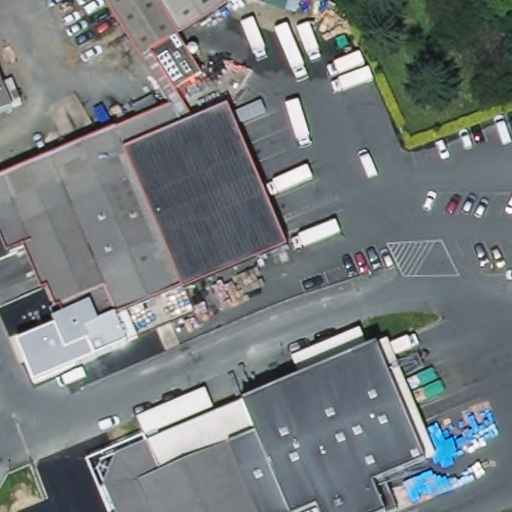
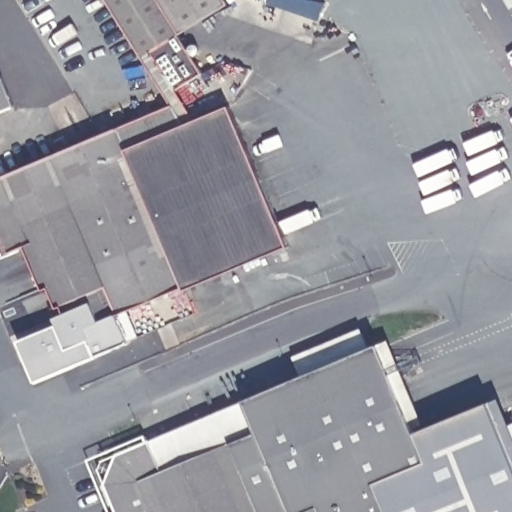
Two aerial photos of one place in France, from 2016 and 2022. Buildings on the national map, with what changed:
unchanged [(139,345),(111,358),(94,351),(91,350),(88,345),(65,355),(53,325),(65,320),(62,312),(58,314),(48,292),(45,294),(26,251),(11,258),(2,237),(0,235),(0,181),(28,169),(60,155),(106,136),(139,121),(172,106),(147,65),(109,0),(181,0),(198,42),(197,42),(214,84),(185,96),(186,100),(197,126),(198,129),(233,115),(269,200),(289,249),(263,260),(221,277),(128,316),(134,330),(139,345)]
unchanged [(13,109),(0,114),(0,77),(13,109)]
unchanged [(440,455),(426,461),(388,477),(399,508),(391,512),(117,512),(97,462),(222,409),(390,339),(440,455)]
new [(499,398),(512,431),(512,512),(391,512),(399,508),(388,477),(426,461),(440,455),(429,430),(490,404),(499,398)]

